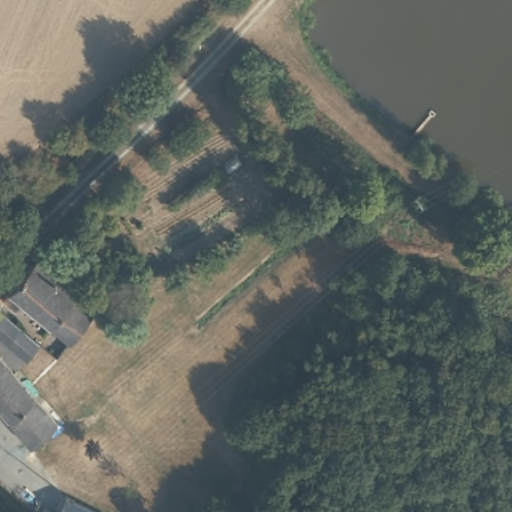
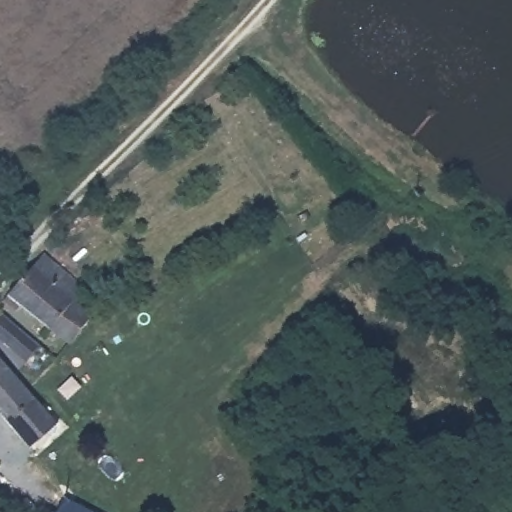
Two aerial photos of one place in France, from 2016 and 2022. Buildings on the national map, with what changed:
unchanged [(41,254),(64,265),(54,276),(55,282),(44,296),(33,309),(9,291),(41,254)]
unchanged [(54,325),(33,309),(44,296),(55,282),(54,276),(64,265),(86,284),(77,297),(93,309),(95,312),(73,340),(54,325)]
unchanged [(25,359),(4,344),(0,341),(0,313),(17,327),(37,343),(25,359)]
unchanged [(57,421),(29,444),(0,413),(0,360),(57,421)]
unchanged [(94,512),(57,512),(65,496),(94,512)]

